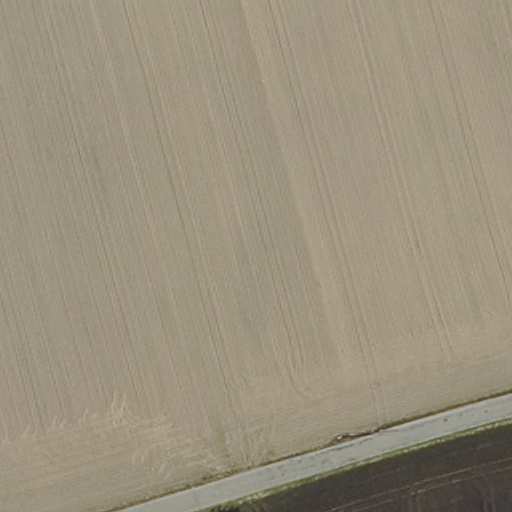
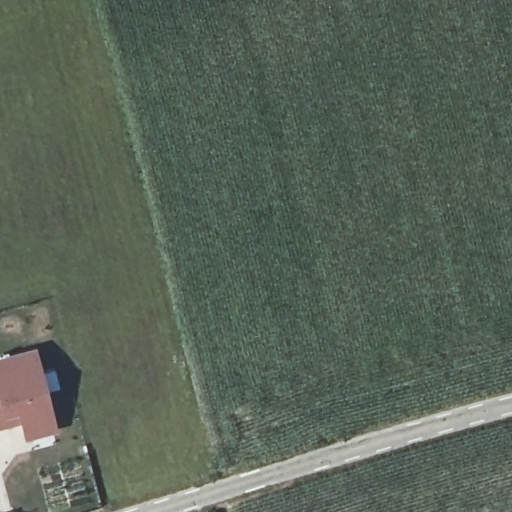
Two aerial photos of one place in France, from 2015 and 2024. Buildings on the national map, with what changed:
new [(36,346),(57,430),(25,438),(22,421),(0,427),(0,356),(36,346)]

